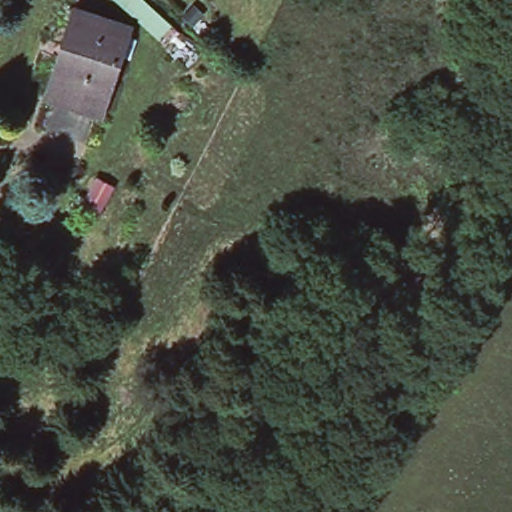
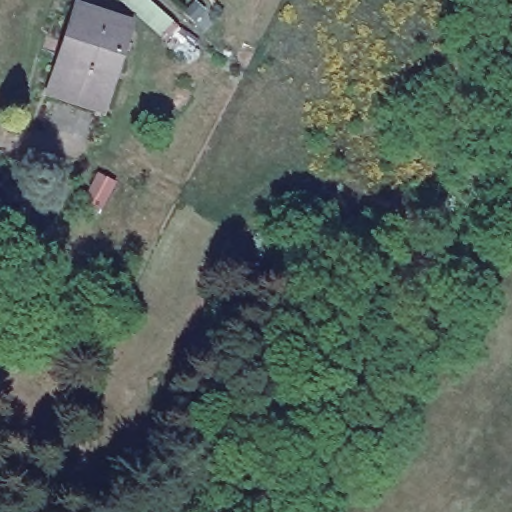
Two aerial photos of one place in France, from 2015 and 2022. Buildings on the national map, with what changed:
unchanged [(65,48),(77,11),(128,27),(101,106),(58,91),(52,90),(65,48)]

